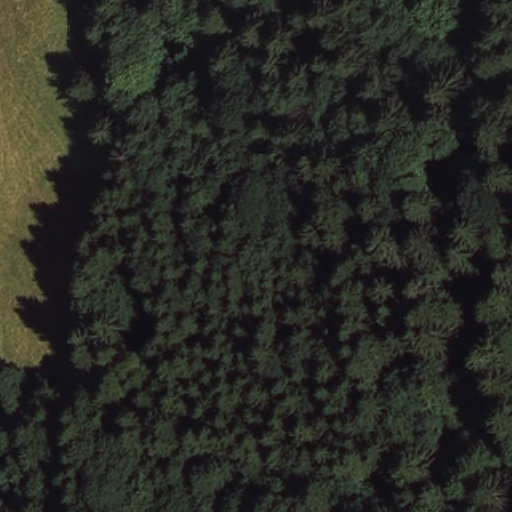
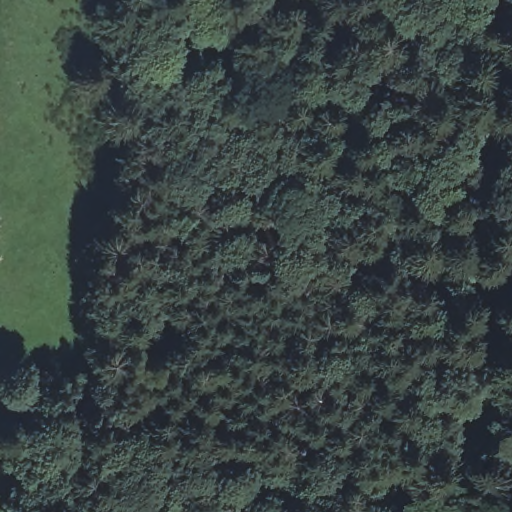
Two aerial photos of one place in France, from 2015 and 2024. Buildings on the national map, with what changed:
[]

